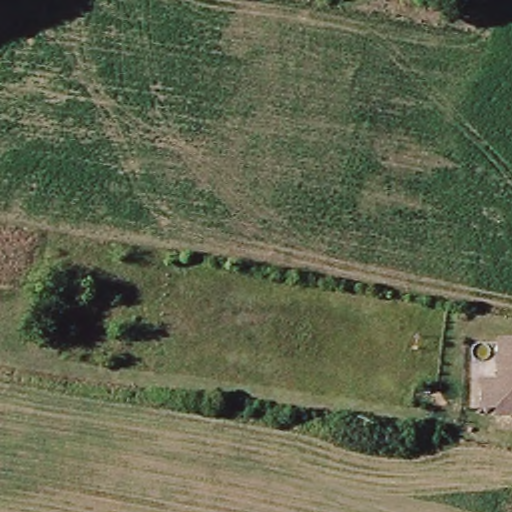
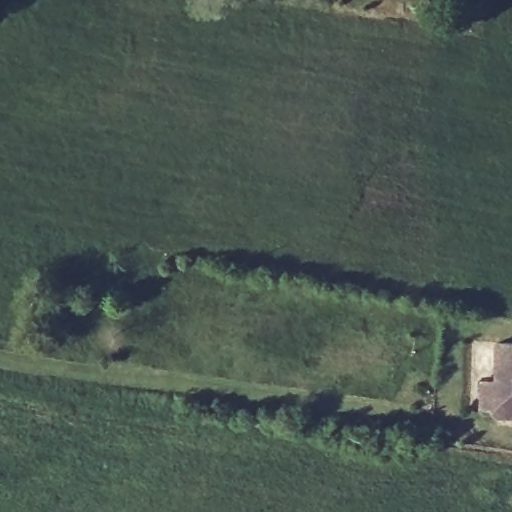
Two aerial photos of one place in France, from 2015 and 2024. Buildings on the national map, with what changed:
unchanged [(495,418),(494,409),(478,409),(478,382),(493,382),(494,342),(512,342),(512,418),(495,418)]

